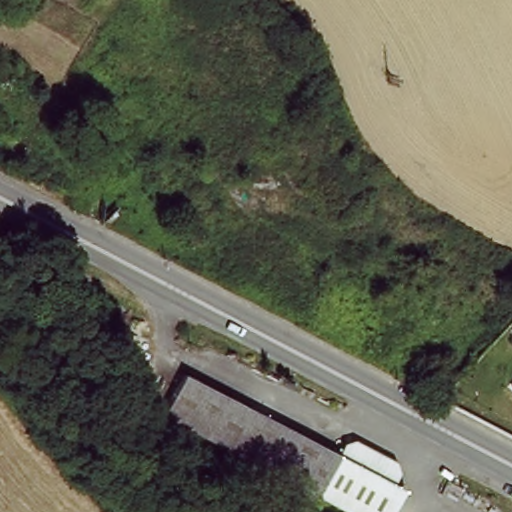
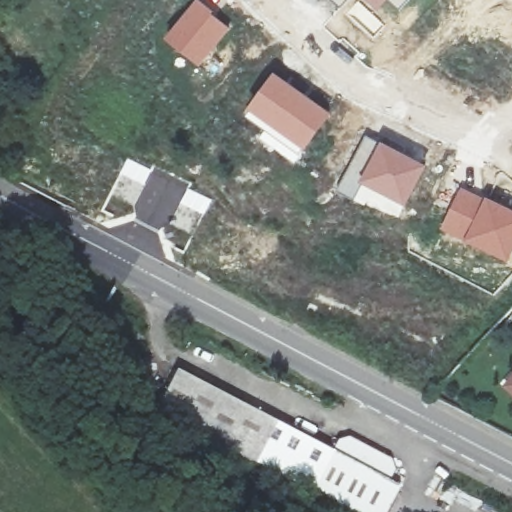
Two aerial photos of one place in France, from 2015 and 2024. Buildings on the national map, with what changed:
new [(200,0),(231,27),(199,65),(165,38),(195,0),(200,0)]
new [(332,0),(346,0),(340,6),(332,0)]
new [(386,1),(378,9),(367,0),(410,0),(399,12),(386,1)]
new [(260,136),(268,125),(248,110),(274,71),(332,112),(304,150),(295,163),(260,136)]
new [(406,205),(399,218),(355,199),(336,190),(365,134),(380,140),(427,164),(406,205)]
new [(512,208),(512,255),(509,262),(440,229),(460,186),(512,208)]
unchanged [(400,489),(388,512),(338,512),(156,416),(177,374),(334,455),(389,483),(400,489)]
unchanged [(512,380),(512,392),(506,387),(512,380)]
unchanged [(334,455),(338,443),(350,440),(392,464),(396,473),(389,483),(334,455)]

